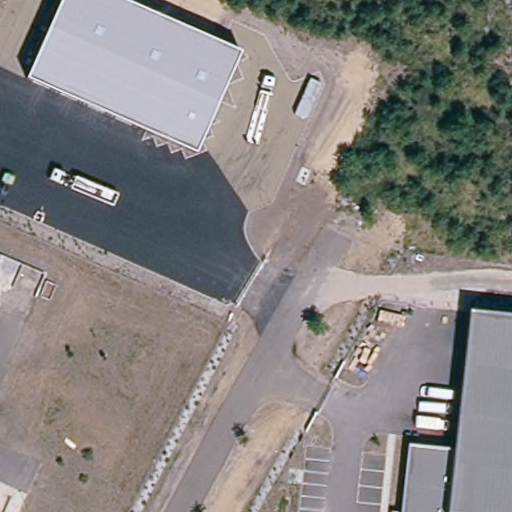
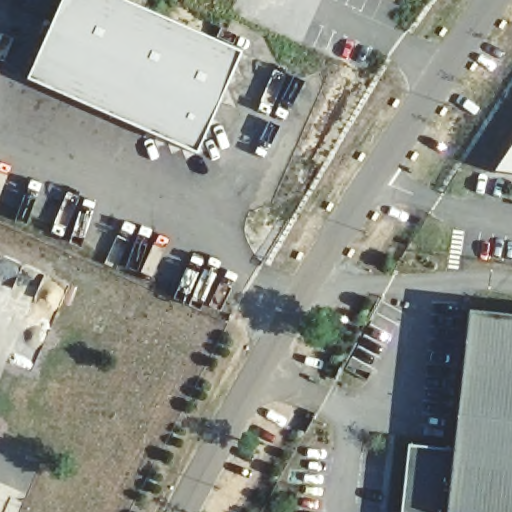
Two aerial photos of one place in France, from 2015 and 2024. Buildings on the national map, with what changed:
unchanged [(240,52),(196,155),(25,78),(59,0),(123,0),(240,52)]
new [(494,171),(512,145),(512,174),(494,171)]
unchanged [(401,512),(409,444),(454,450),(470,309),(512,314),(512,512),(401,512)]

